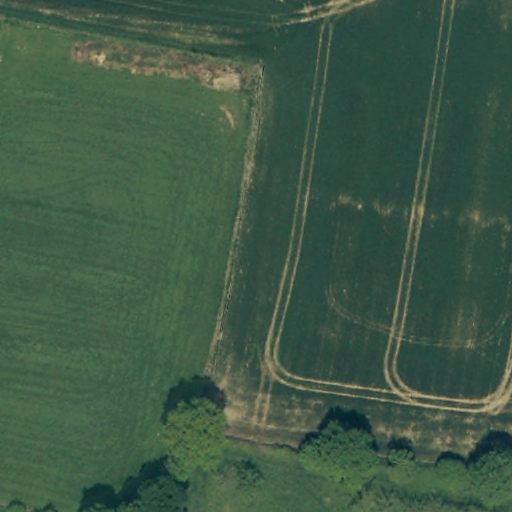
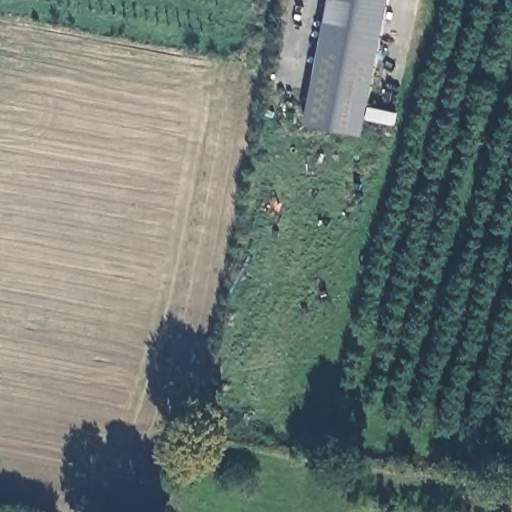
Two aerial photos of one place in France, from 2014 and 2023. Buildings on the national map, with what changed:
new [(362,137),(305,126),(330,0),(388,0),(362,137)]

